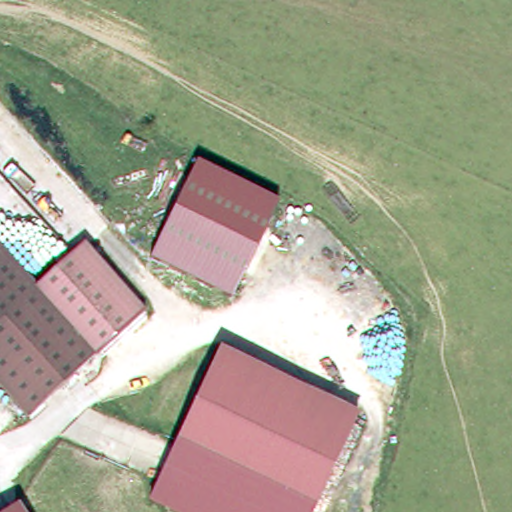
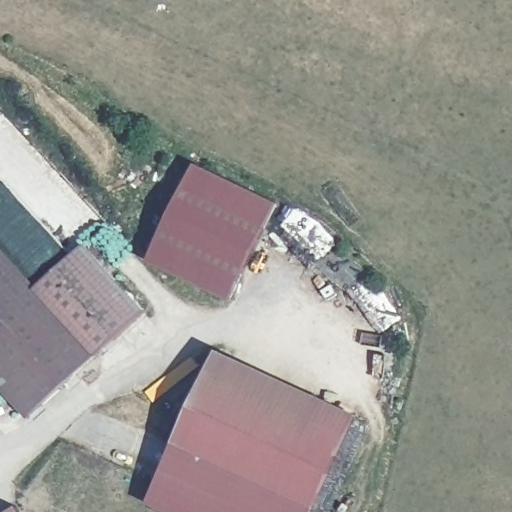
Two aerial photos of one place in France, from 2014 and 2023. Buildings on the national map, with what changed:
unchanged [(277,203),(230,300),(148,260),(195,163),(277,203)]
unchanged [(31,417),(0,383),(0,243),(40,287),(87,244),(148,312),(31,417)]
unchanged [(319,506),(182,442),(224,350),(362,414),(319,506)]
unchanged [(316,512),(168,512),(150,504),(182,442),(319,506),(316,512)]
unchanged [(7,512),(16,506),(20,512),(7,512)]

